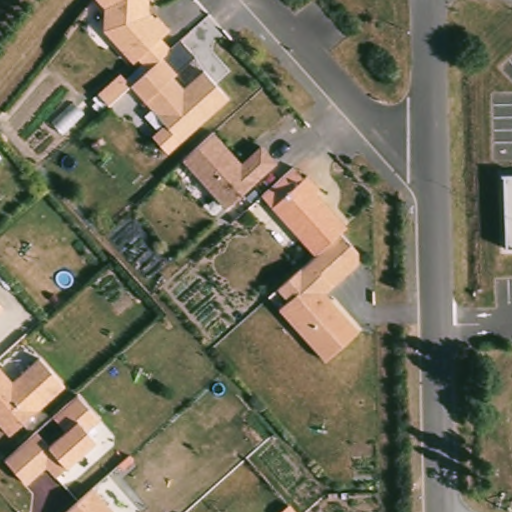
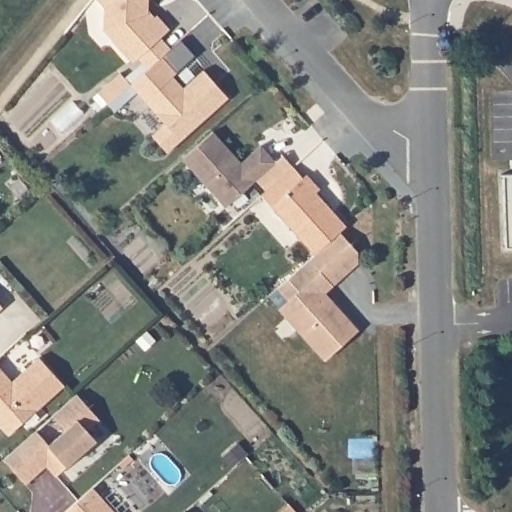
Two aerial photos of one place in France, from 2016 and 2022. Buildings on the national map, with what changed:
unchanged [(149,9),(158,17),(160,15),(171,30),(164,36),(173,48),(165,56),(180,73),(176,76),(185,86),(207,68),(230,98),(180,141),(137,88),(113,108),(98,94),(123,73),(133,84),(148,71),(140,59),(134,63),(106,27),(107,4),(104,0),(150,0),(149,9)]
unchanged [(226,208),(183,160),(214,131),(242,163),(263,145),(276,162),(226,208)]
unchanged [(261,195),(294,168),(305,179),(309,176),(322,190),(319,195),(348,227),(337,236),(316,255),(261,195)]
unchanged [(512,172),(512,247),(506,247),(502,172),(512,172)]
unchanged [(362,266),(325,300),(359,339),(326,369),(278,314),(287,306),(276,292),(337,236),(362,266)]
unchanged [(0,313),(0,308),(3,311),(0,313)]
unchanged [(40,360),(64,391),(6,442),(0,435),(0,372),(11,387),(40,360)]
unchanged [(88,433),(97,442),(55,481),(45,473),(24,492),(0,466),(0,465),(34,433),(48,447),(61,436),(51,419),(78,396),(100,423),(88,433)]
unchanged [(114,512),(66,512),(93,488),(114,512)]

